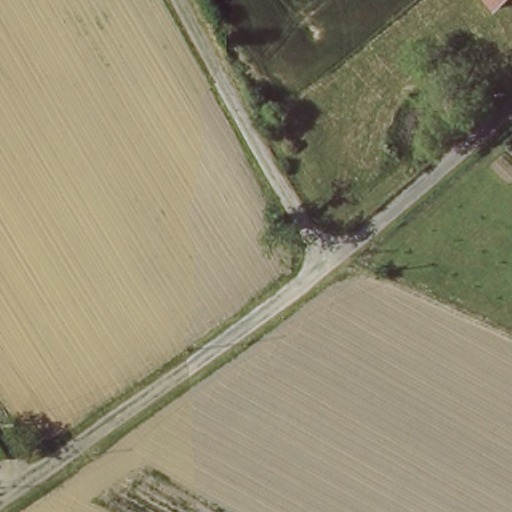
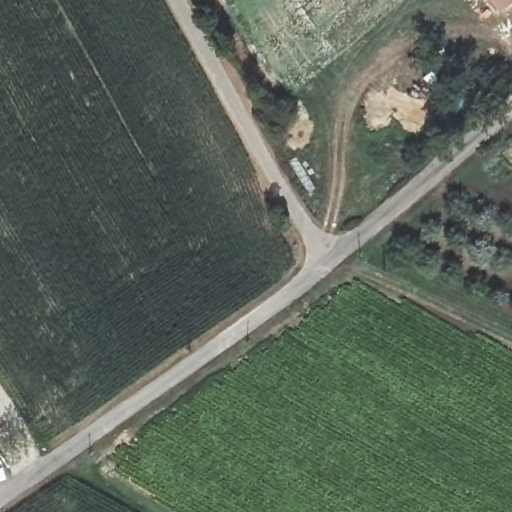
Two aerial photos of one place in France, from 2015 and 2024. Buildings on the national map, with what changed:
unchanged [(491,0),(512,0),(499,11),(491,0)]

